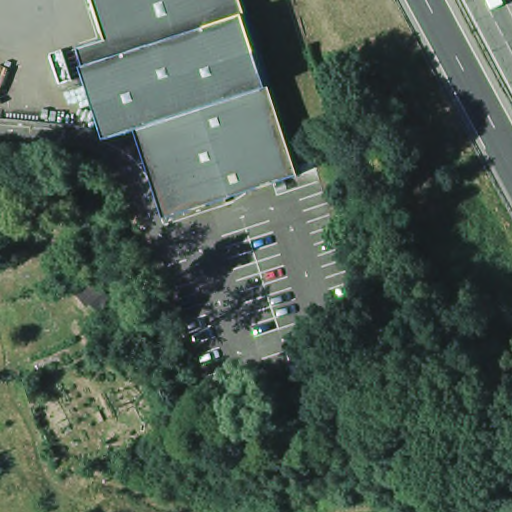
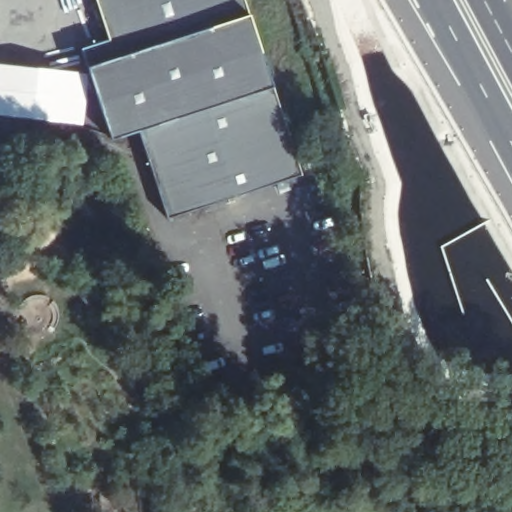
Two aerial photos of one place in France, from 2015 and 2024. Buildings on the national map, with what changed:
unchanged [(282,112),(293,147),(301,172),(165,216),(137,127),(110,136),(80,45),(107,36),(96,0),(245,0),(272,84),(282,112)]
new [(82,71),(82,73),(87,100),(83,126),(0,116),(0,62),(82,71)]
unchanged [(340,193),(337,187),(335,182),(330,172),(328,166),(325,160),(323,154),(337,144),(342,141),(349,139),(369,184),(354,189),(340,193)]
unchanged [(22,197),(30,219),(89,200),(95,219),(0,250),(0,204),(22,197)]

